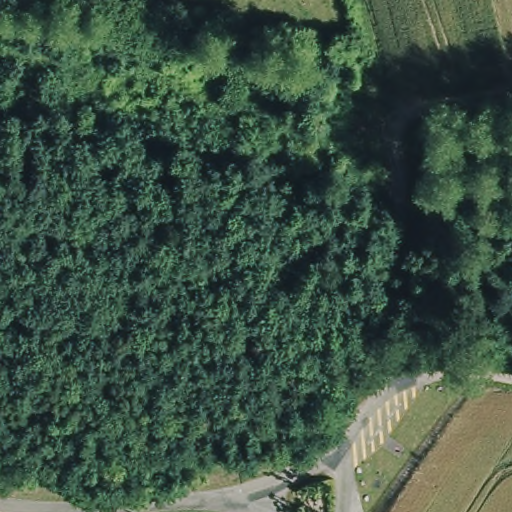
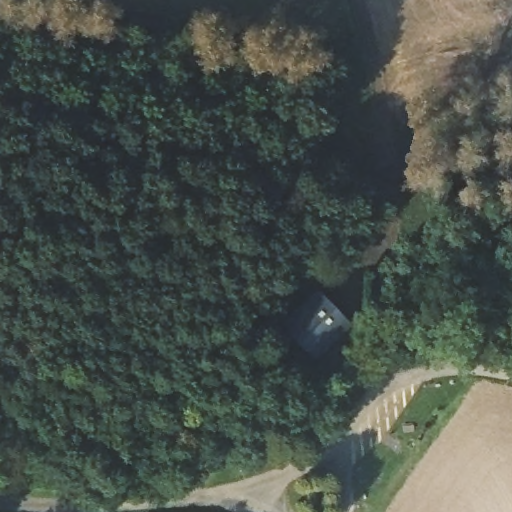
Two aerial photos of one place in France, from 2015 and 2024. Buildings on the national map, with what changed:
new [(315,360),(280,323),(317,289),(352,326),(315,360)]

